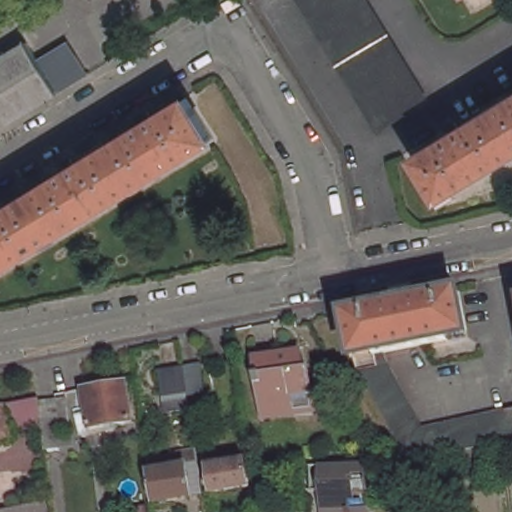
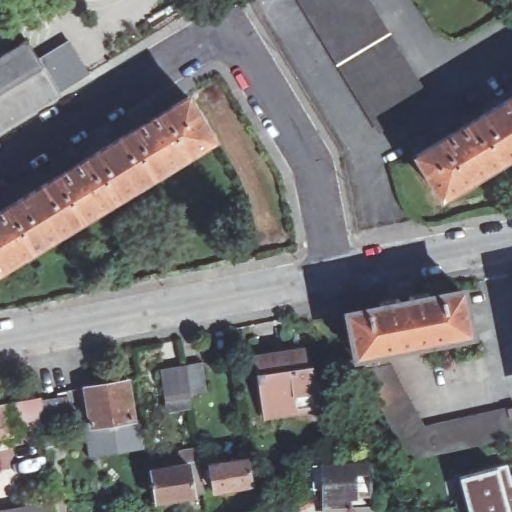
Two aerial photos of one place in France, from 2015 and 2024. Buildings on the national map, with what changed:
unchanged [(88,74),(62,90),(59,91),(60,92),(50,97),(40,104),(31,110),(25,113),(20,116),(19,116),(12,120),(11,121),(1,127),(0,128),(0,58),(28,40),(38,57),(42,55),(9,0),(29,0),(56,46),(68,40),(77,54),(89,74),(88,74)]
unchanged [(176,14),(168,0),(200,0),(176,14)]
unchanged [(380,121),(375,115),(369,104),(368,102),(362,91),(360,90),(354,79),(353,77),(346,67),(345,65),(340,55),(338,52),(332,42),(330,40),(325,30),(323,28),(317,17),(315,15),(310,5),(308,4),(306,0),(374,0),(380,10),(381,12),(388,22),(389,25),(395,35),(396,37),(403,47),(404,50),(410,60),(411,61),(418,72),(419,74),(425,84),(426,86),(402,101),(404,104),(380,121)]
unchanged [(142,125),(140,119),(150,112),(153,117),(188,96),(210,134),(209,135),(193,145),(196,149),(113,200),(41,243),(0,268),(0,211),(65,171),(62,166),(73,160),(76,165),(106,146),(113,142),(142,125)]
unchanged [(456,129),(467,122),(471,127),(512,103),(512,153),(510,154),(512,156),(512,159),(468,185),(465,181),(450,190),(447,191),(425,155),(460,135),(456,129)]
unchanged [(512,438),(493,442),(455,451),(439,455),(415,460),(383,403),(381,400),(378,395),(363,367),(363,365),(361,358),(357,335),(353,313),(386,306),(398,304),(397,300),(403,298),(415,296),(420,295),(421,300),(433,297),(467,290),(474,328),(454,332),(455,337),(389,348),(391,352),(393,357),(429,425),(512,408),(512,438)]
unchanged [(301,352),(305,366),(310,365),(315,390),(294,393),(296,407),(265,411),(256,358),(301,352)]
unchanged [(170,370),(195,365),(212,362),(217,390),(200,393),(201,403),(201,407),(176,411),(170,370)]
unchanged [(128,380),(135,420),(115,423),(115,427),(98,430),(97,425),(92,426),(85,387),(128,380)]
unchanged [(58,398),(71,396),(80,443),(66,445),(47,449),(44,423),(10,430),(11,435),(0,436),(0,405),(40,397),(41,400),(58,398)]
unchanged [(205,460),(210,492),(162,500),(156,468),(159,468),(157,459),(184,455),(183,452),(203,450),(205,460)]
unchanged [(256,485),(220,490),(214,456),(250,450),(256,485)]
unchanged [(376,460),(377,509),(328,510),(327,488),(317,488),(318,463),(376,460)]
new [(497,468),(505,467),(510,486),(512,486),(512,497),(512,512),(462,512),(453,480),(462,478),(497,468)]
unchanged [(0,512),(0,506),(55,496),(57,512),(0,512)]

